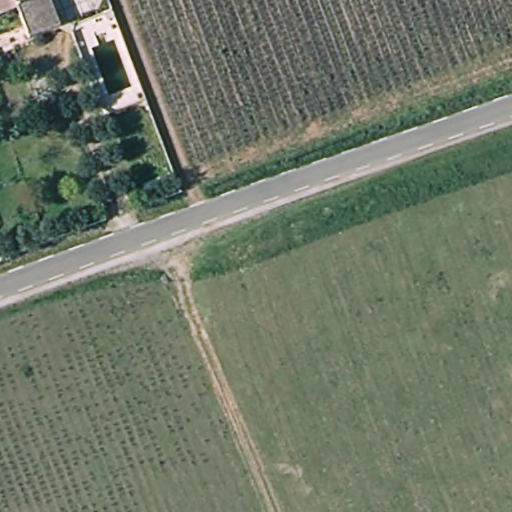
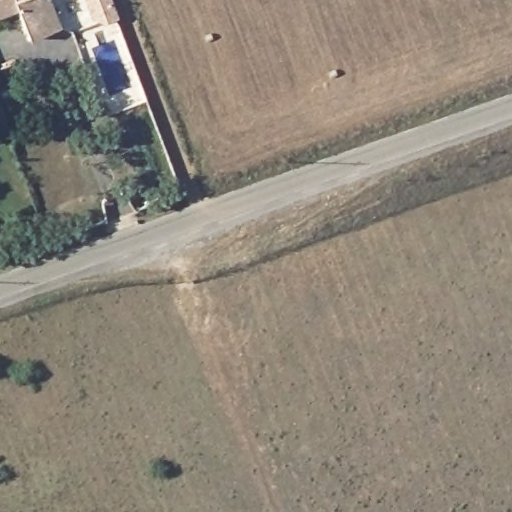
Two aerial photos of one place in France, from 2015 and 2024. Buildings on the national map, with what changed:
unchanged [(31,40),(18,9),(0,17),(0,0),(49,0),(60,27),(31,40)]

